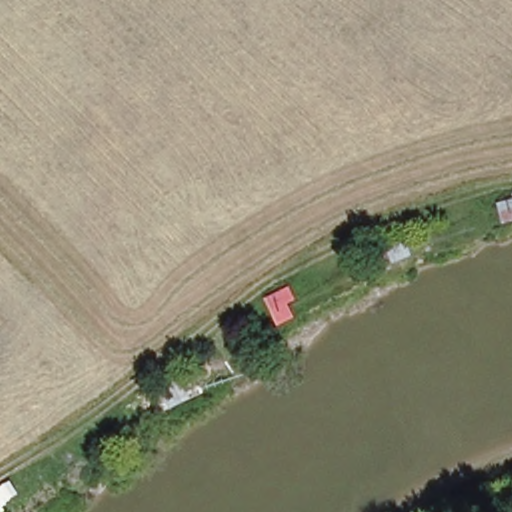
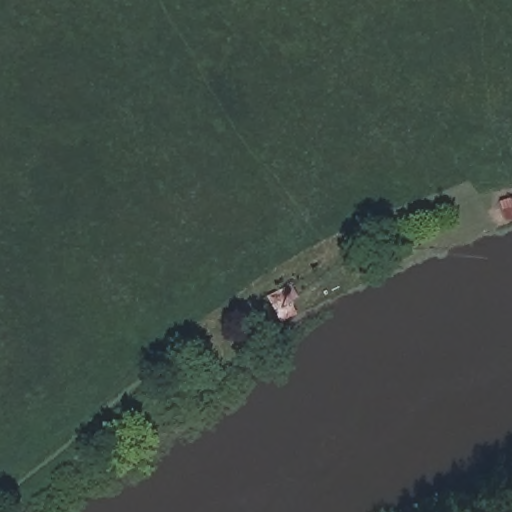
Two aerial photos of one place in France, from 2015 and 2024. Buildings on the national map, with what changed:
unchanged [(497,209),(512,205),(512,228),(502,231),(497,209)]
unchanged [(371,255),(395,247),(402,270),(380,279),(371,255)]
unchanged [(156,384),(181,367),(191,381),(183,386),(190,398),(172,409),(156,384)]
unchanged [(32,512),(17,512),(29,505),(32,512)]

